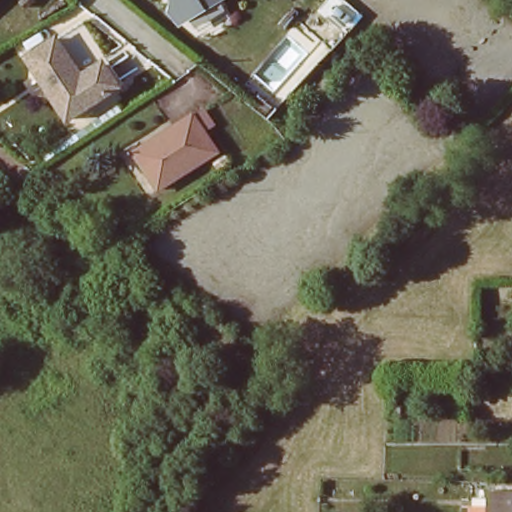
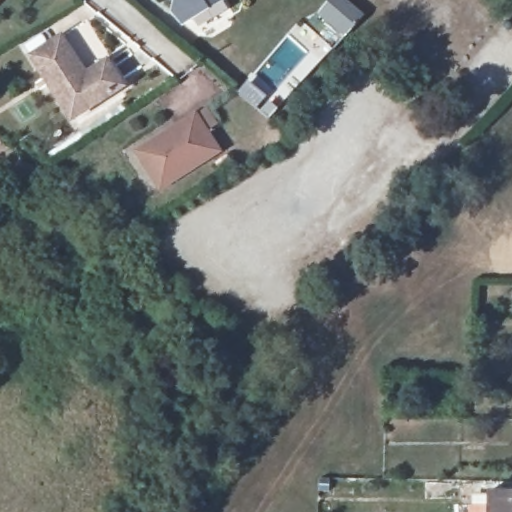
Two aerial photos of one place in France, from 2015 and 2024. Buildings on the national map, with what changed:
unchanged [(187,25),(173,0),(222,0),(223,2),(187,25)]
unchanged [(123,87),(72,119),(33,56),(62,37),(88,77),(109,64),(123,87)]
unchanged [(195,115),(218,152),(160,189),(137,152),(195,115)]
unchanged [(493,511),(491,511),(492,490),(512,490),(512,512),(493,512),(493,511)]

